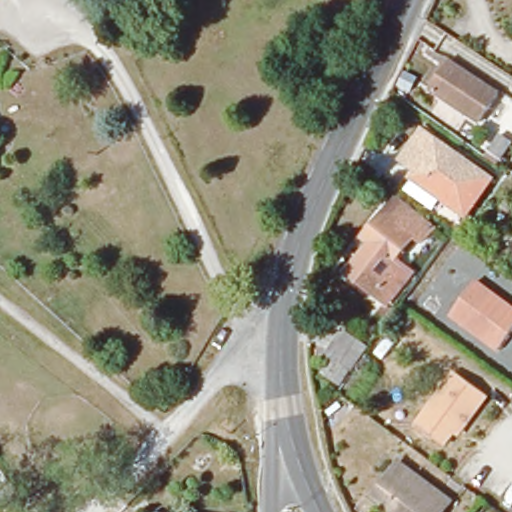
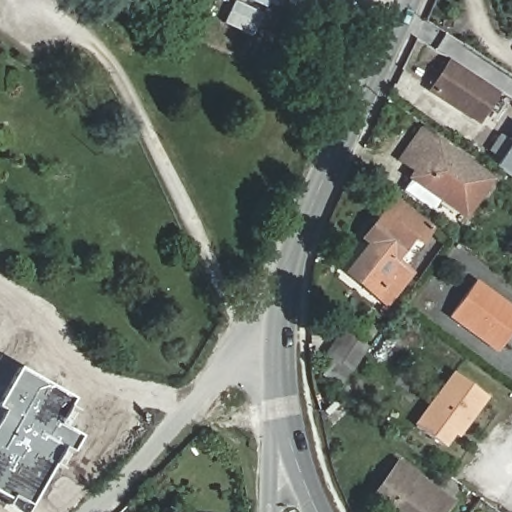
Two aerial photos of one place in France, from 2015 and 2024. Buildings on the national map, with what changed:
unchanged [(498,93),(479,121),(430,89),(449,61),(498,93)]
unchanged [(472,215),(418,177),(423,170),(407,159),(428,130),(497,179),(472,215)]
unchanged [(499,136),(511,144),(501,159),(489,151),(499,136)]
unchanged [(424,246),(416,240),(397,264),(413,277),(388,309),(348,277),(372,247),(366,242),(398,201),(436,231),(424,246)]
unchanged [(512,307),(512,329),(498,348),(454,316),(479,282),(512,307)]
unchanged [(327,380),(339,365),(332,360),(349,336),(370,352),(353,375),(352,376),(341,391),(327,380)]
new [(59,424),(79,436),(70,451),(64,448),(27,510),(0,493),(0,417),(4,411),(0,409),(0,402),(20,370),(73,401),(59,424)]
unchanged [(459,435),(454,432),(444,445),(418,425),(457,371),(488,395),(459,435)]
unchanged [(452,512),(396,512),(396,509),(381,498),(404,467),(457,506),(452,512)]
unchanged [(167,508),(172,508),(175,512),(162,512),(162,511),(167,508)]

